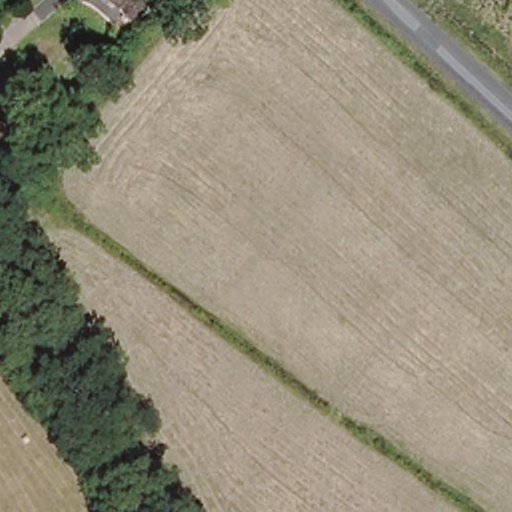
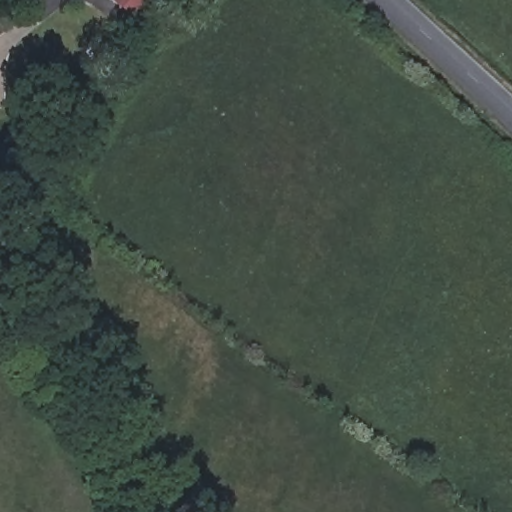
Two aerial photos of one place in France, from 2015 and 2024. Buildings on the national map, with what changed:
unchanged [(135,17),(125,9),(117,17),(111,10),(119,3),(114,0),(148,0),(146,2),(154,10),(143,23),(135,17)]

